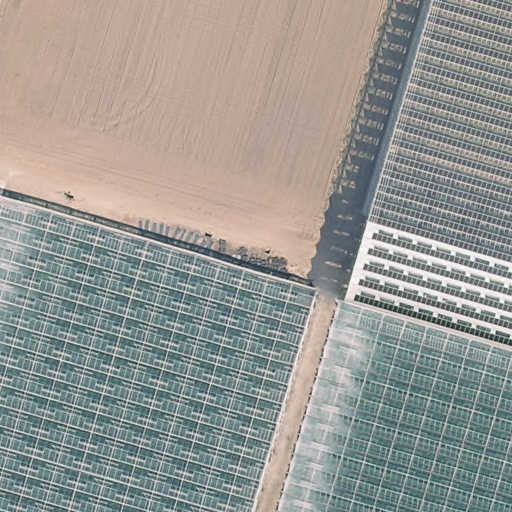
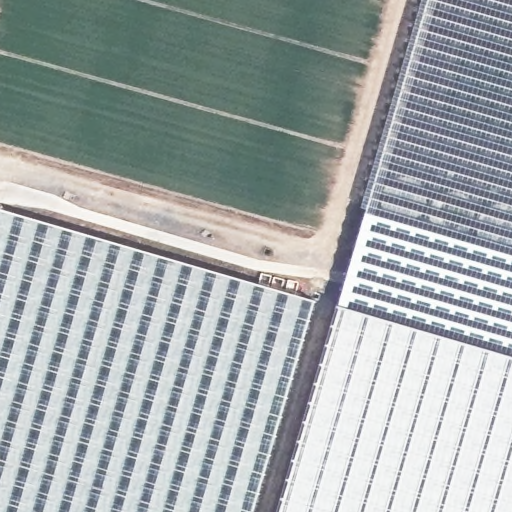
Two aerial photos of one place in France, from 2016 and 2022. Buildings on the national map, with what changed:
unchanged [(336,307),(425,0),(512,0),(512,358),(350,310),(336,307)]
unchanged [(260,512),(0,512),(0,210),(322,305),(260,512)]
unchanged [(512,358),(512,512),(290,512),(350,310),(512,358)]

